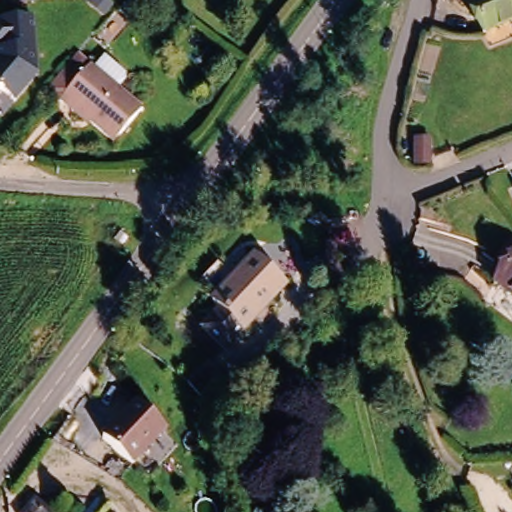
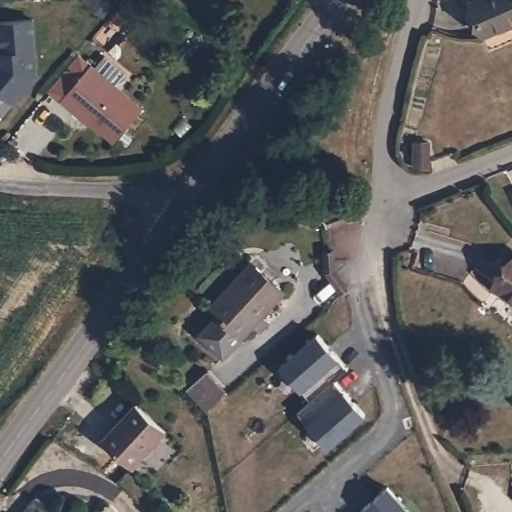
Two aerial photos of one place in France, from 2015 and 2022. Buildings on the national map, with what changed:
unchanged [(481,31),(468,0),(512,0),(512,17),(481,31)]
unchanged [(38,82),(13,108),(1,98),(0,98),(0,28),(33,26),(38,82)]
unchanged [(111,146),(73,114),(70,117),(57,106),(58,105),(46,95),(76,60),(88,70),(88,69),(91,72),(102,60),(122,77),(123,84),(115,92),(139,113),(111,146)]
unchanged [(433,148),(426,172),(411,167),(419,143),(433,148)]
unchanged [(512,249),(512,299),(489,283),(512,249)]
unchanged [(200,337),(221,314),(209,304),(256,256),(286,293),(243,332),(221,354),(200,337)]
new [(303,388),(282,364),(318,333),(339,357),(349,368),(336,381),(344,390),(366,415),(330,446),(309,421),(300,411),(314,399),(303,388)]
unchanged [(184,392),(204,374),(223,396),(203,414),(184,392)]
unchanged [(103,442),(137,406),(166,434),(132,470),(103,442)]
new [(389,487),(410,512),(359,512),(364,508),(389,487)]
unchanged [(52,512),(25,512),(36,500),(52,512)]

